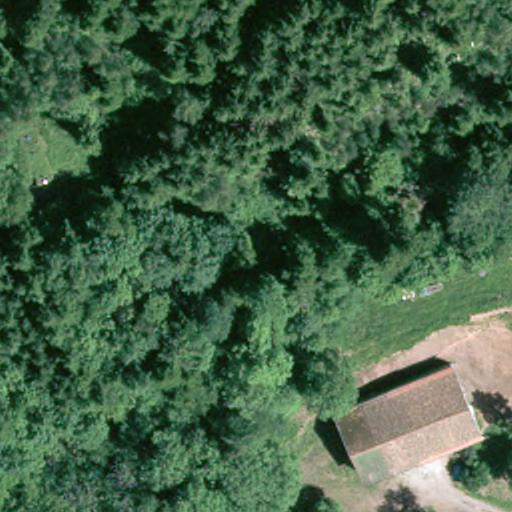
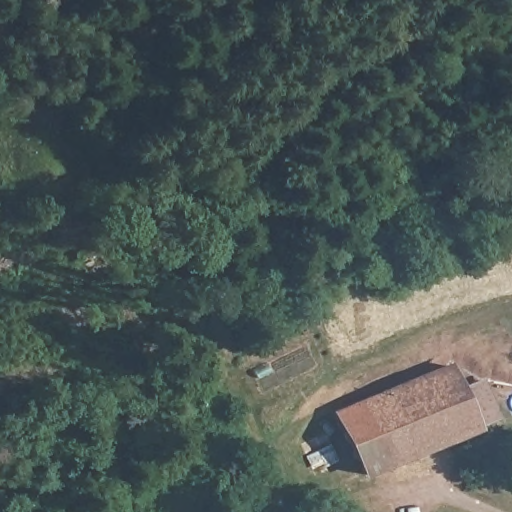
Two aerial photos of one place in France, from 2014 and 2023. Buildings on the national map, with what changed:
unchanged [(363,408),(448,372),(459,395),(469,392),(473,401),(462,407),(474,431),(392,468),(363,408)]
unchanged [(371,478),(336,420),(363,408),(392,468),(371,478)]

